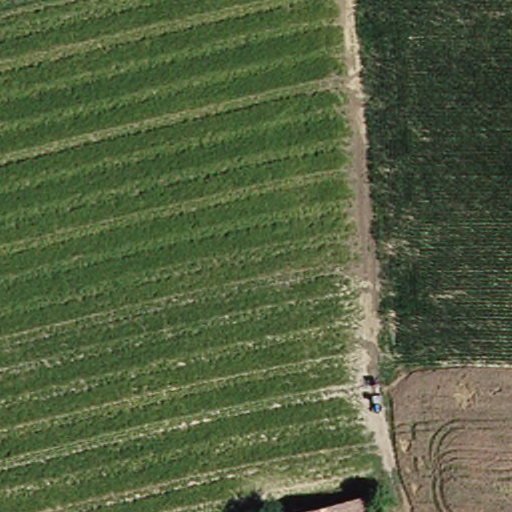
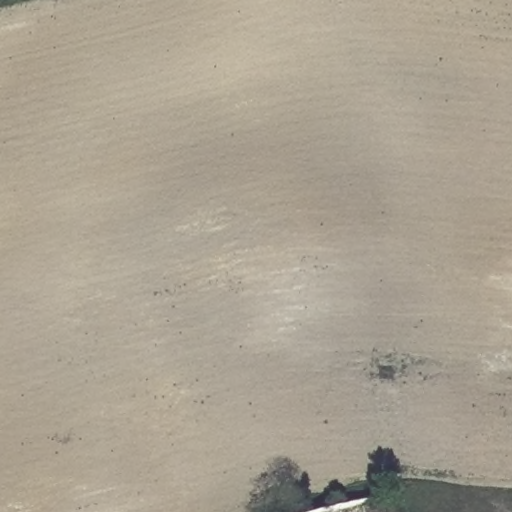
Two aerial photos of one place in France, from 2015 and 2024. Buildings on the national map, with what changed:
unchanged [(327,512),(366,498),(371,512),(327,512)]

